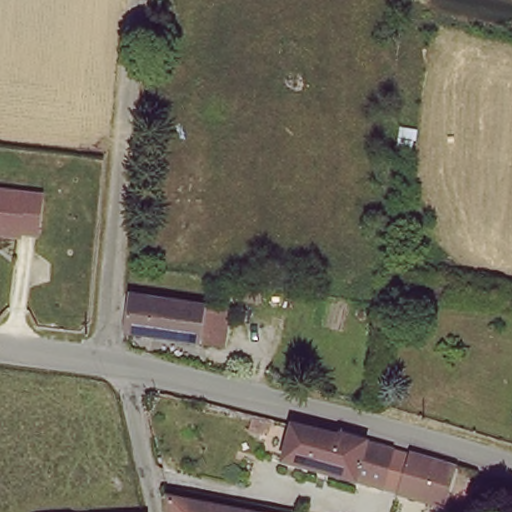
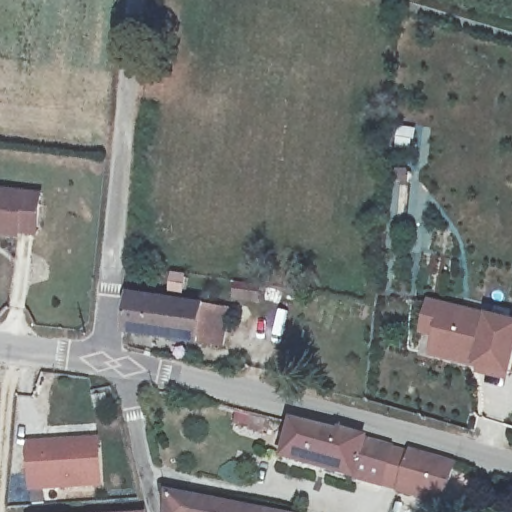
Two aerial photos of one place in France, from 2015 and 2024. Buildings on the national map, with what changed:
unchanged [(36,233),(19,232),(18,236),(0,234),(0,192),(39,195),(36,233)]
unchanged [(194,340),(127,326),(131,289),(201,303),(194,340)]
new [(475,367),(430,356),(434,336),(419,333),(428,299),(488,313),(512,319),(512,376),(505,375),(508,381),(476,374),(475,367)]
unchanged [(229,310),(224,345),(194,340),(201,303),(229,310)]
unchanged [(338,437),(389,451),(380,487),(310,469),(283,461),(292,428),(318,435),(336,440),(338,437)]
new [(29,494),(26,445),(99,439),(102,489),(29,494)]
unchanged [(412,457),(453,469),(443,504),(401,492),(412,457)]
unchanged [(166,512),(168,493),(276,512),(166,512)]

